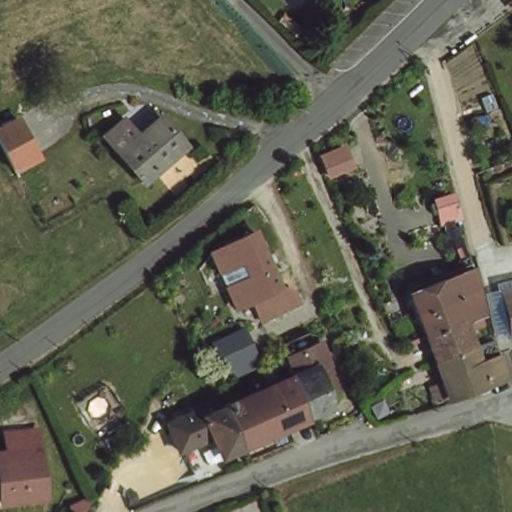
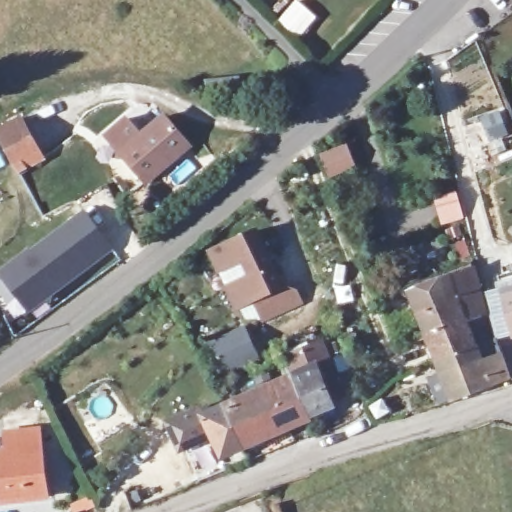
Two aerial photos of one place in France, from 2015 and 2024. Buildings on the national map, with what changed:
unchanged [(40,155),(18,168),(10,159),(0,140),(0,124),(18,115),(40,155)]
unchanged [(191,145),(148,183),(107,138),(128,120),(142,135),(164,115),(191,145)]
new [(28,248),(30,250),(83,211),(113,248),(28,312),(0,275),(0,271),(28,248)]
unchanged [(283,285),(297,289),(304,303),(264,324),(255,302),(233,311),(208,252),(259,228),(283,285)]
unchanged [(407,289),(477,266),(484,296),(487,311),(481,313),(423,332),(407,289)]
unchanged [(512,335),(502,293),(512,291),(512,335)]
unchanged [(423,332),(481,313),(484,322),(471,327),(476,344),(434,358),(423,332)]
unchanged [(259,355),(226,367),(216,340),(249,327),(259,355)]
unchanged [(429,384),(442,380),(434,358),(476,344),(489,386),(449,399),(437,404),(429,384)]
unchanged [(319,346),(337,399),(324,403),(326,409),(304,418),(291,375),(283,359),(319,346)]
unchanged [(291,375),(304,418),(236,447),(219,408),(291,375)]
unchanged [(236,447),(216,455),(207,436),(178,452),(165,419),(196,404),(201,416),(219,408),(236,447)]
unchanged [(2,456),(7,455),(3,435),(35,428),(48,479),(48,493),(5,505),(0,485),(0,456),(2,456)]

